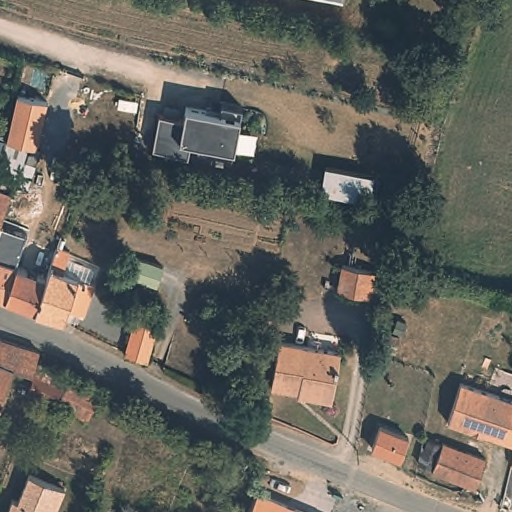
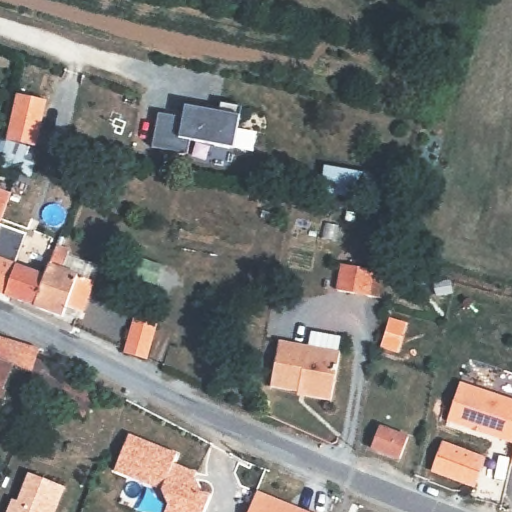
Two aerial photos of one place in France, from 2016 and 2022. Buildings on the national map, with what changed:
unchanged [(47,100),(38,146),(7,140),(17,95),(47,100)]
unchanged [(159,112),(183,116),(185,105),(219,111),(220,104),(241,107),(235,149),(190,142),(188,155),(153,149),(159,112)]
unchanged [(17,177),(0,171),(0,159),(6,141),(27,147),(40,151),(35,164),(30,177),(19,172),(17,177)]
unchanged [(380,177),(372,205),(318,193),(323,166),(380,177)]
unchanged [(0,188),(16,193),(0,240),(0,188)]
unchanged [(19,300),(0,291),(0,245),(9,248),(10,246),(25,251),(20,265),(52,275),(41,307),(19,300)]
unchanged [(75,251),(67,270),(99,281),(88,312),(72,306),(69,317),(41,307),(52,275),(61,246),(75,251)]
unchanged [(383,299),(338,290),(343,264),(388,267),(383,299)]
unchanged [(392,352),(378,346),(394,300),(409,305),(392,352)]
unchanged [(155,325),(144,357),(128,352),(136,321),(155,325)]
unchanged [(58,404),(55,405),(27,392),(29,386),(17,380),(19,368),(14,365),(4,390),(7,390),(0,409),(0,337),(39,350),(38,353),(36,358),(100,392),(87,419),(58,404)]
unchanged [(340,352),(331,401),(306,396),(305,393),(271,386),(279,340),(340,352)]
unchanged [(467,428),(448,421),(461,383),(512,402),(512,445),(467,428)]
unchanged [(409,437),(401,458),(372,447),(380,426),(409,437)]
new [(177,455),(171,470),(195,479),(200,492),(211,496),(205,512),(165,512),(168,505),(162,490),(114,471),(129,435),(177,455)]
unchanged [(492,453),(480,482),(437,465),(447,436),(492,453)]
unchanged [(7,512),(11,500),(16,502),(28,474),(66,488),(57,512),(7,512)]
unchanged [(250,512),(258,491),(307,512),(250,512)]

